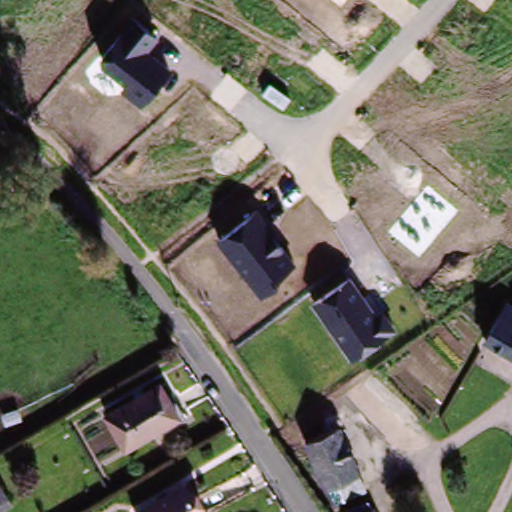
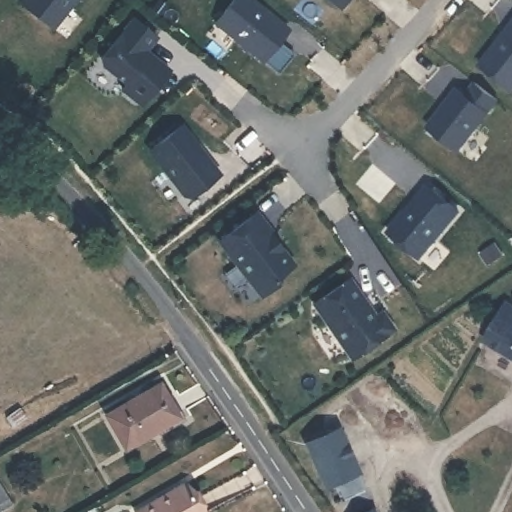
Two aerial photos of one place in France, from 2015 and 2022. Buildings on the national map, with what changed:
new [(22,0),(74,0),(51,29),(19,3),(22,0)]
new [(277,73),(262,60),(214,22),(232,0),(252,0),(287,29),(278,41),(294,53),(277,73)]
new [(339,11),(326,0),(348,0),(339,11)]
unchanged [(159,38),(145,57),(167,76),(144,107),(120,90),(125,82),(102,65),(102,57),(132,18),(159,38)]
new [(511,89),(479,64),(512,22),(512,87),(511,89)]
new [(456,87),(465,94),(475,81),(496,98),(456,149),(426,125),(456,87)]
new [(181,125),(219,174),(191,196),(184,195),(149,150),(181,125)]
demolished [(106,182),(131,161),(195,237),(170,258),(106,182)]
new [(462,211),(421,259),(386,233),(427,182),(462,211)]
unchanged [(255,214),(295,269),(262,298),(217,241),(255,214)]
unchanged [(351,278),(374,311),(380,308),(395,332),(385,338),(387,341),(352,361),(313,303),(351,278)]
unchanged [(482,346),(504,308),(512,313),(512,363),(482,346)]
unchanged [(106,421),(160,391),(178,423),(125,454),(106,421)]
unchanged [(335,486),(324,491),(304,447),(336,433),(362,491),(342,499),(335,486)]
unchanged [(0,506),(0,483),(11,500),(0,506)]
unchanged [(196,512),(147,512),(184,490),(196,512)]
unchanged [(373,512),(366,512),(372,509),(373,512)]

